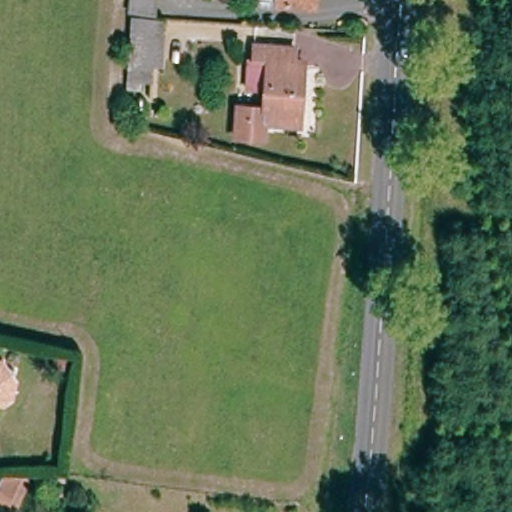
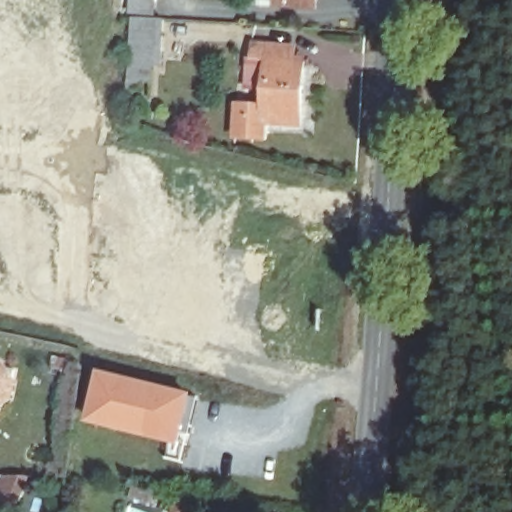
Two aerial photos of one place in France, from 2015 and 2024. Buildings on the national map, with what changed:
unchanged [(153,60),(151,89),(122,87),(128,20),(123,15),(124,0),(155,0),(153,19),(166,20),(164,61),(153,60)]
unchanged [(315,12),(277,10),(277,0),(316,0),(315,12)]
unchanged [(288,59),(288,70),(298,70),(292,135),(255,132),(263,74),(249,72),(251,55),(288,59)]
unchanged [(3,373),(11,375),(9,383),(11,387),(7,404),(0,408),(0,367),(3,373)]
new [(87,424),(100,372),(193,395),(180,447),(87,424)]
new [(5,466),(32,477),(18,511),(0,503),(0,480),(5,466)]

